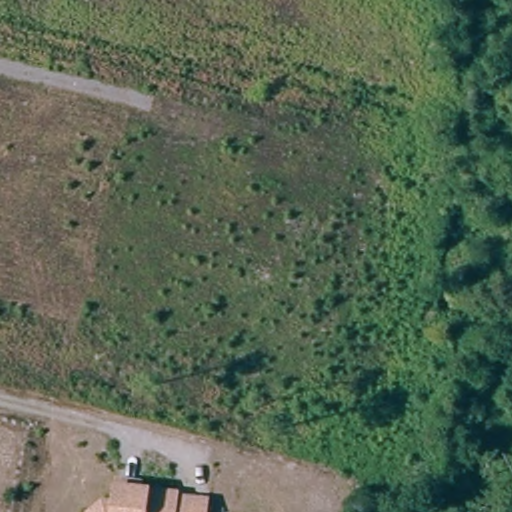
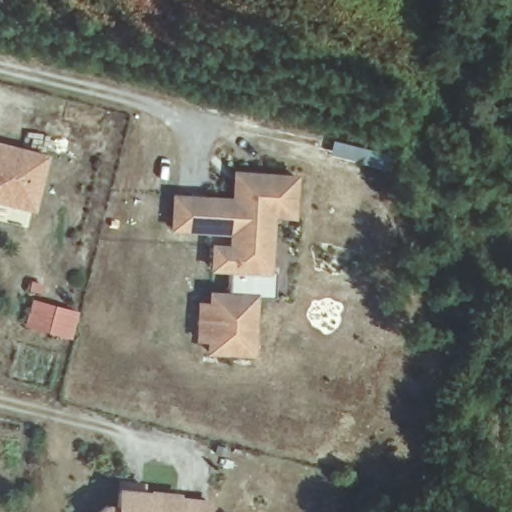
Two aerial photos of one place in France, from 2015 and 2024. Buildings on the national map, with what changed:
new [(0,203),(0,148),(46,157),(38,197),(36,209),(23,207),(0,203)]
new [(235,196),(235,185),(235,170),(257,170),(295,171),(295,210),(274,209),(275,232),(275,265),(275,292),(256,291),(256,348),(218,348),(218,336),(209,336),(208,302),(218,302),(218,290),(235,290),(235,266),(218,266),(218,243),(235,243),(235,229),(177,229),(177,196),(235,196)]
new [(80,310),(72,340),(23,328),(31,296),(80,310)]
unchanged [(114,508),(113,492),(113,484),(136,485),(136,493),(175,494),(176,497),(208,499),(208,512),(95,512),(101,507),(114,508)]

